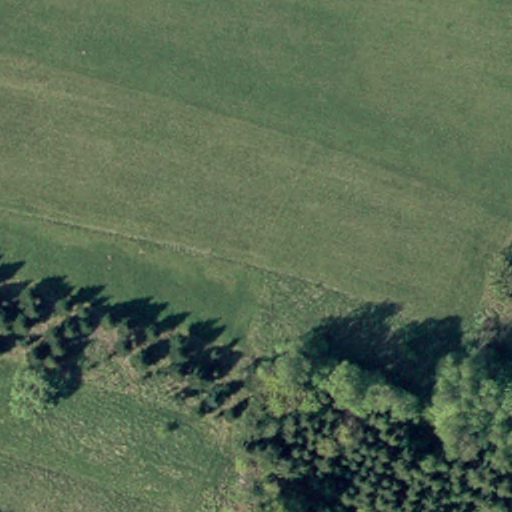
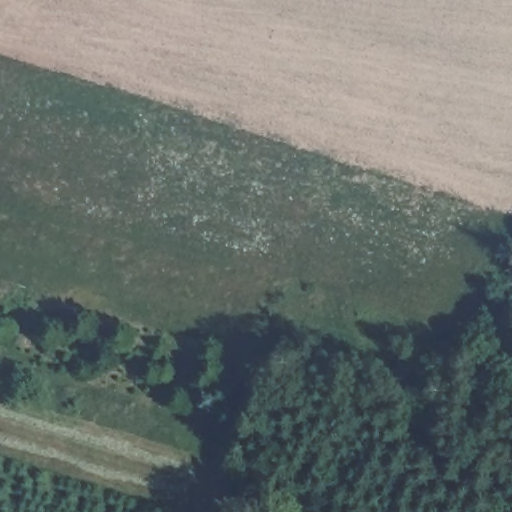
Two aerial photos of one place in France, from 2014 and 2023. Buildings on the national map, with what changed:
[]

